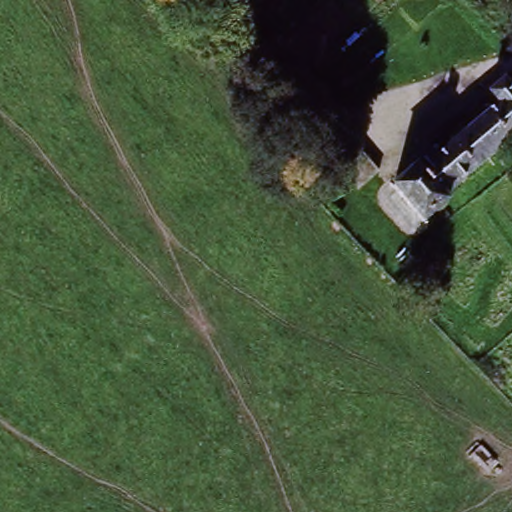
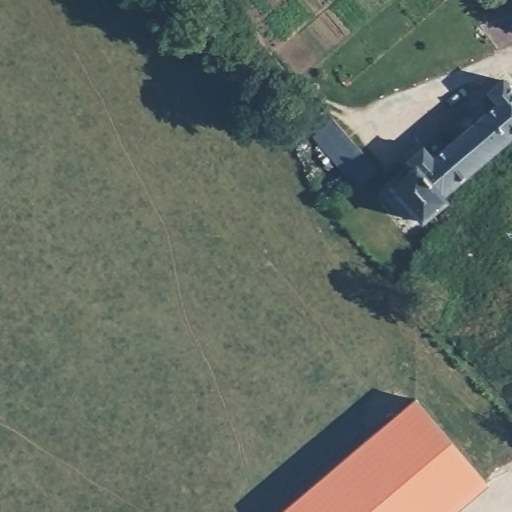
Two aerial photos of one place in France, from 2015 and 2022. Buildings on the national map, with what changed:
unchanged [(412,164),(406,157),(420,145),(430,156),(495,101),(485,90),(500,78),(512,92),(512,129),(437,193),(442,198),(419,218),(389,184),(412,164)]
unchanged [(320,136),(339,119),(384,172),(363,189),(320,136)]
new [(488,486),(457,512),(283,512),(417,400),(488,486)]

